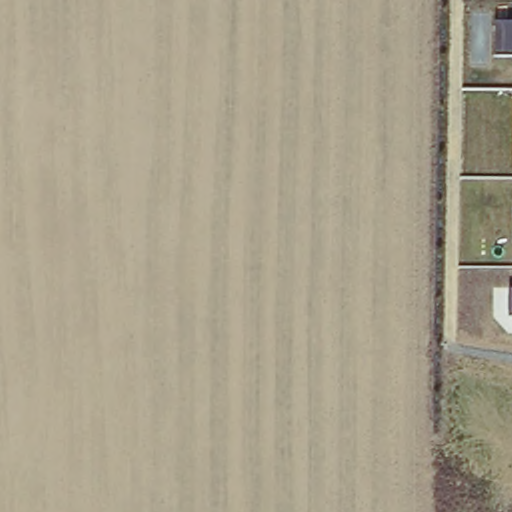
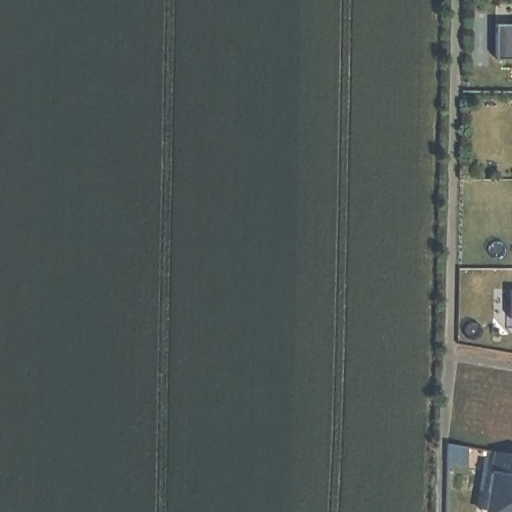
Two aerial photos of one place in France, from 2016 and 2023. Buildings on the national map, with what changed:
unchanged [(497,21),(512,22),(512,57),(497,56),(497,21)]
unchanged [(511,289),(512,289),(512,317),(510,317),(511,289)]
new [(498,457),(512,459),(512,512),(488,512),(491,497),(498,457)]

